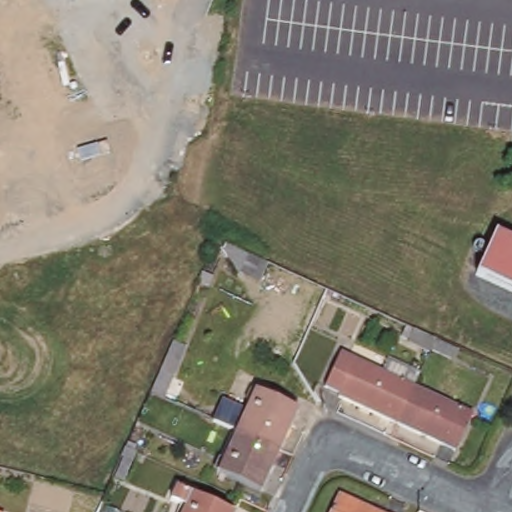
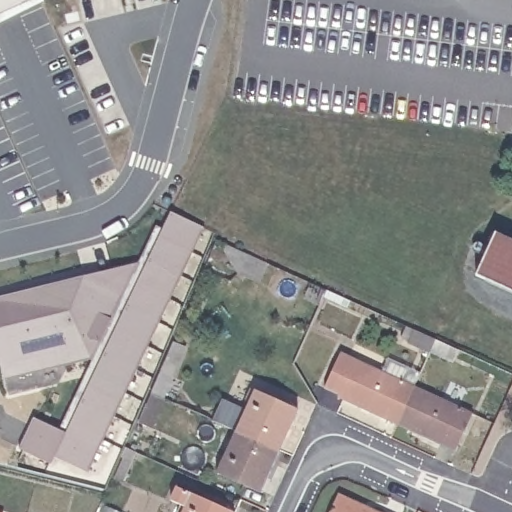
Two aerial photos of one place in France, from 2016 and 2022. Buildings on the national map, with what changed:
new [(28,4),(0,17),(0,0),(26,0),(28,4)]
new [(28,4),(26,0),(37,0),(28,4)]
new [(41,372),(5,381),(0,359),(0,296),(139,263),(156,226),(162,229),(171,212),(205,227),(91,473),(57,458),(54,464),(40,457),(39,459),(21,450),(35,418),(61,430),(93,360),(68,366),(41,372)]
unchanged [(494,232),(510,239),(512,240),(512,290),(475,273),(494,232)]
unchanged [(237,275),(222,251),(225,244),(235,249),(246,254),(237,275)]
unchanged [(438,341),(432,354),(412,345),(418,332),(438,341)]
unchanged [(141,414),(150,394),(152,390),(167,356),(172,341),(184,347),(161,398),(152,419),(141,414)]
unchanged [(397,426),(340,398),(342,394),(326,386),(342,353),(416,388),(397,426)]
unchanged [(473,416),(454,454),(397,426),(416,388),(473,416)]
unchanged [(278,450),(236,432),(255,390),(297,409),(278,450)]
unchanged [(260,491),(217,472),(236,432),(278,450),(260,491)]
unchanged [(124,481),(116,478),(129,448),(137,452),(124,481)]
unchanged [(171,499),(177,487),(232,512),(183,512),(186,507),(171,499)]
unchanged [(332,512),(340,494),(378,512),(332,512)]

